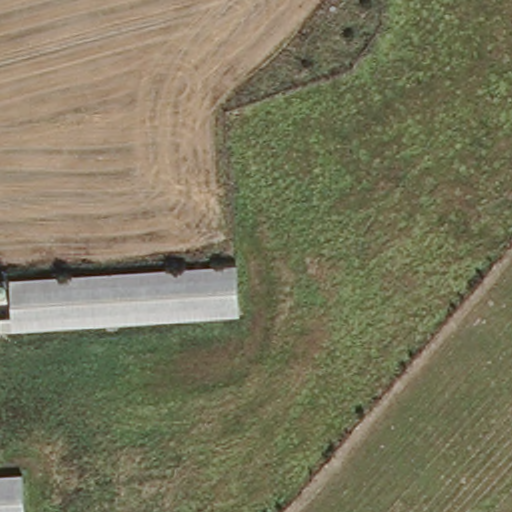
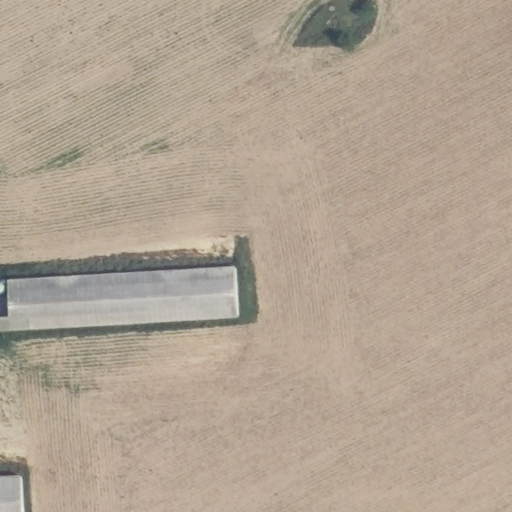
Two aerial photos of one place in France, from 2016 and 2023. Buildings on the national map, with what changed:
unchanged [(235,267),(238,316),(0,331),(0,317),(10,316),(9,279),(235,267)]
unchanged [(21,512),(0,512),(0,476),(18,475),(21,512)]

